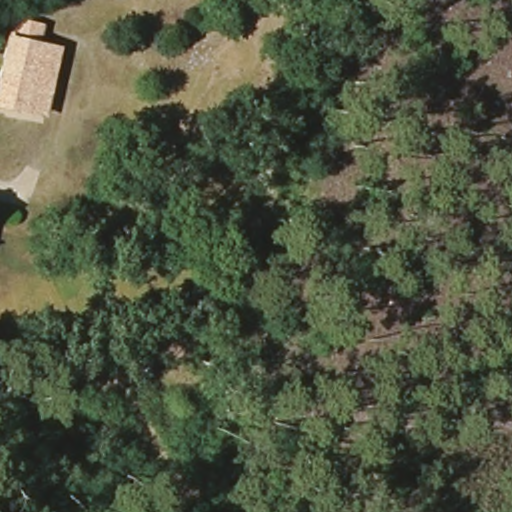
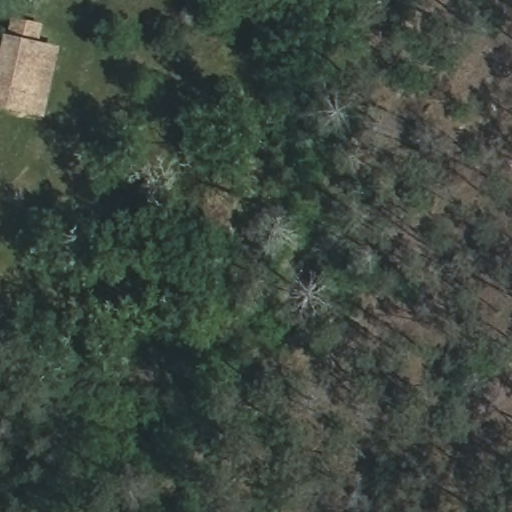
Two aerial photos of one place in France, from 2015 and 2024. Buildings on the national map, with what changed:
unchanged [(0,69),(7,40),(29,43),(19,101),(0,97),(0,69)]
unchanged [(29,43),(56,46),(40,104),(19,101),(29,43)]

